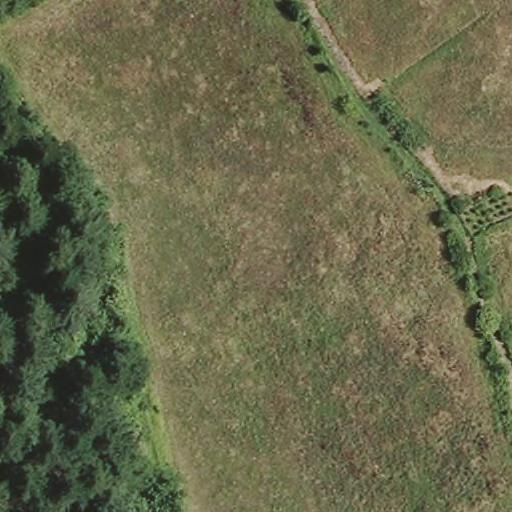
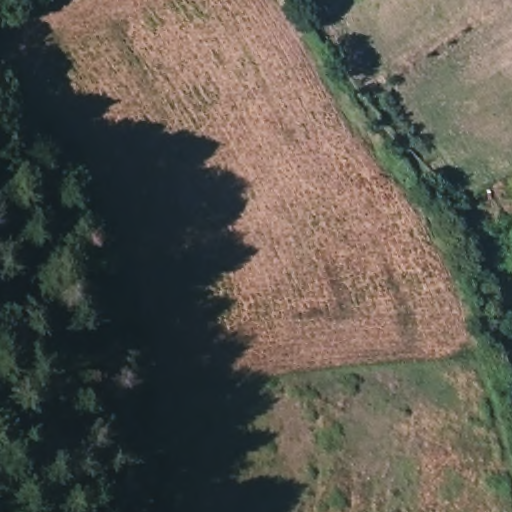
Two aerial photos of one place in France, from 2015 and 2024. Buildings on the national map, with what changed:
[]

